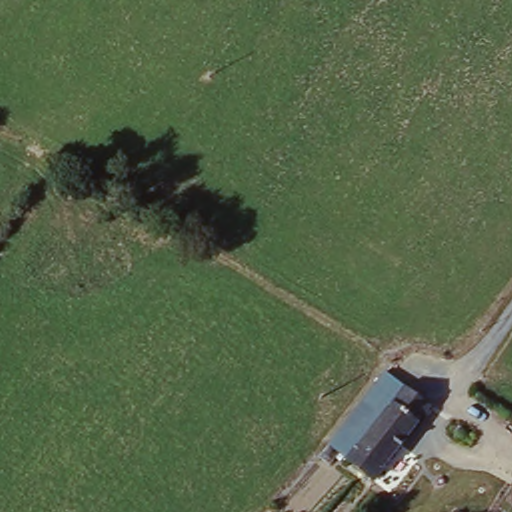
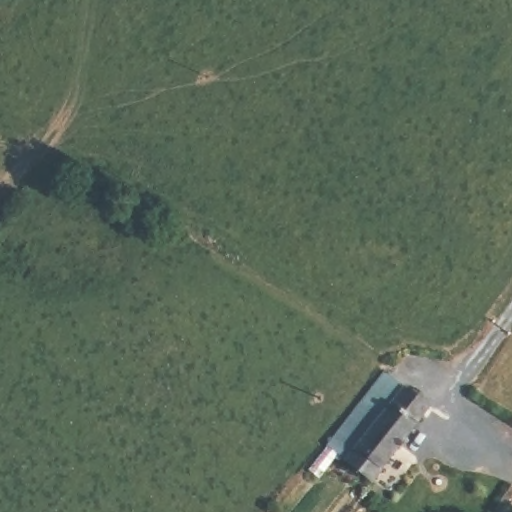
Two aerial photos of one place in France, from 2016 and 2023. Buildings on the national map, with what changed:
unchanged [(351,465),(333,450),(390,377),(409,391),(423,401),(425,400),(436,408),(434,410),(435,411),(377,485),(351,465)]

